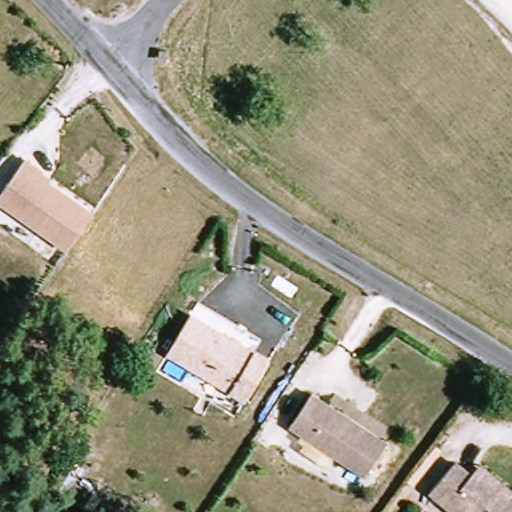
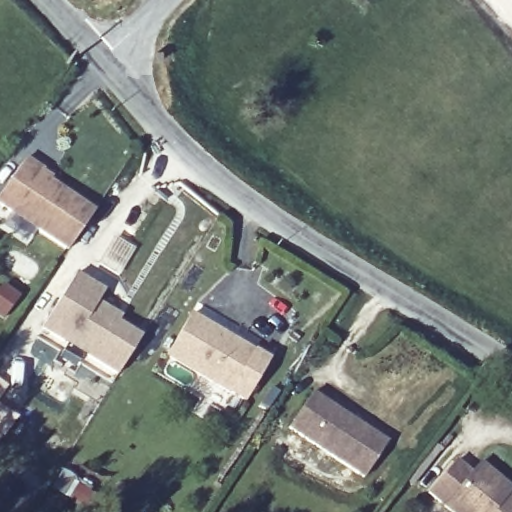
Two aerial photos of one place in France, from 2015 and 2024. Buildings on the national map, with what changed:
unchanged [(0,200),(29,157),(53,176),(52,180),(95,210),(69,250),(0,202),(0,200)]
new [(42,326),(74,275),(102,292),(96,303),(114,315),(119,318),(116,323),(140,338),(117,373),(87,354),(65,340),(42,326)]
unchanged [(267,361),(245,400),(167,355),(190,316),(267,361)]
new [(0,395),(0,380),(7,385),(0,395)]
unchanged [(366,476),(291,427),(312,393),(342,412),(351,418),(387,442),(366,476)]
new [(5,435),(0,432),(0,405),(17,416),(5,435)]
unchanged [(452,512),(430,495),(456,464),(472,473),(477,465),(511,488),(506,495),(512,501),(512,512),(452,512)]

